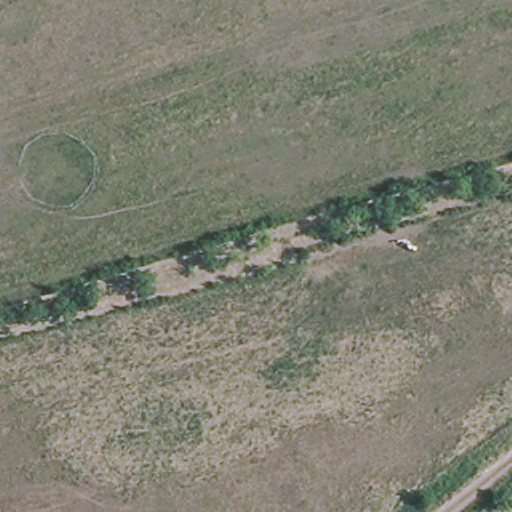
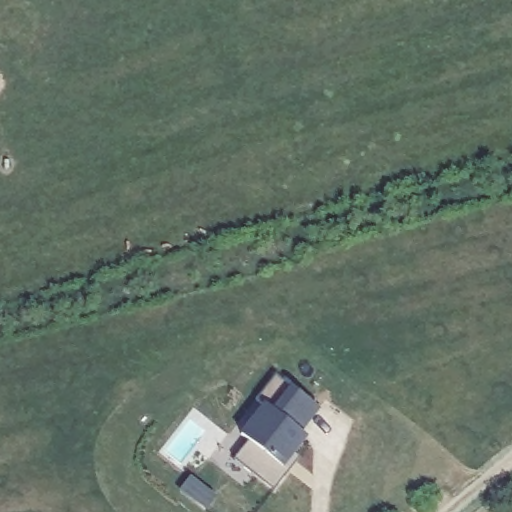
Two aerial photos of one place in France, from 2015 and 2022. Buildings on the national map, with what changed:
new [(233,459),(247,442),(239,436),(263,406),(256,400),(277,373),(291,385),(321,409),(299,434),(306,439),(295,453),(299,457),(274,489),(233,459)]

